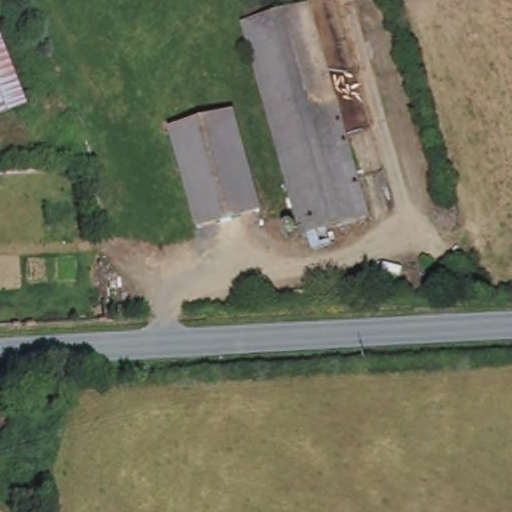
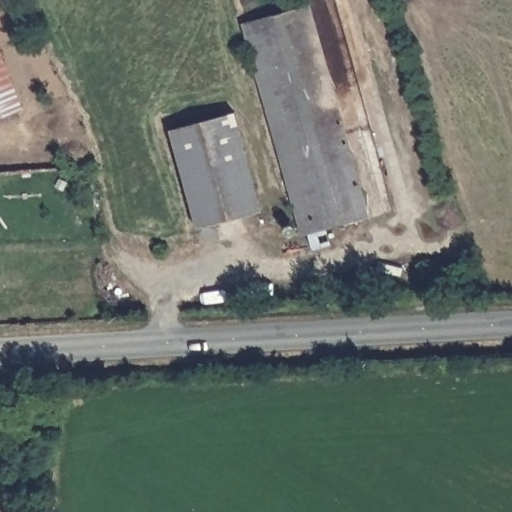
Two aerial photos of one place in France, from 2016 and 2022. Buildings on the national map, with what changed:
unchanged [(312,7),(372,220),(330,231),(332,247),(312,251),(307,235),(302,235),(287,239),(285,225),(297,223),(244,26),(312,7)]
unchanged [(0,114),(0,36),(27,105),(0,114)]
unchanged [(227,117),(256,214),(201,228),(174,133),(227,117)]

